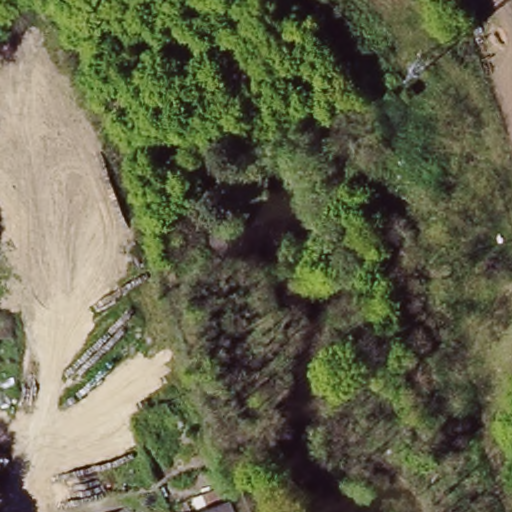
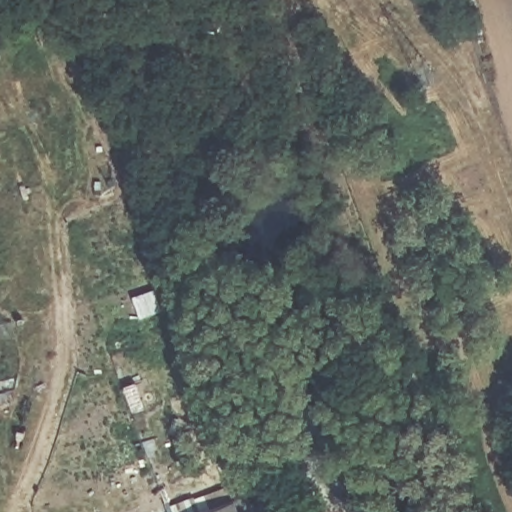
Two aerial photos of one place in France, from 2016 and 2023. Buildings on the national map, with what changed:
unchanged [(245,493),(253,512),(194,512),(245,493)]

